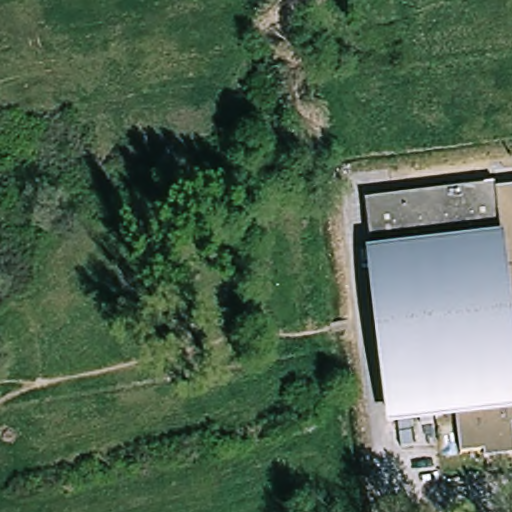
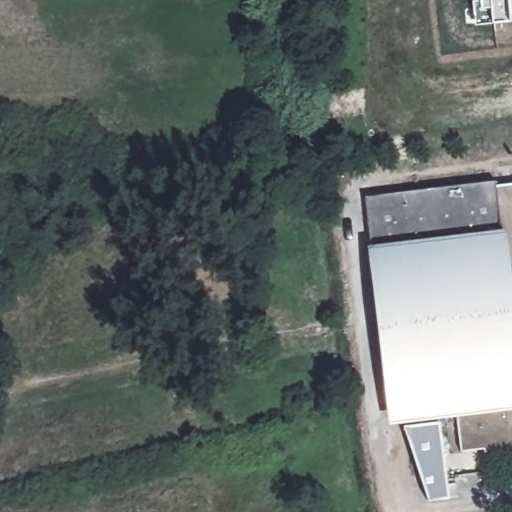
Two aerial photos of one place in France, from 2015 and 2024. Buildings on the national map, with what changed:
new [(508,21),(492,23),(475,26),(472,0),(474,0),(512,0),(512,21),(508,21)]
unchanged [(367,197),(512,183),(512,460),(487,463),(483,452),(463,455),(457,420),(388,430),(367,197)]

